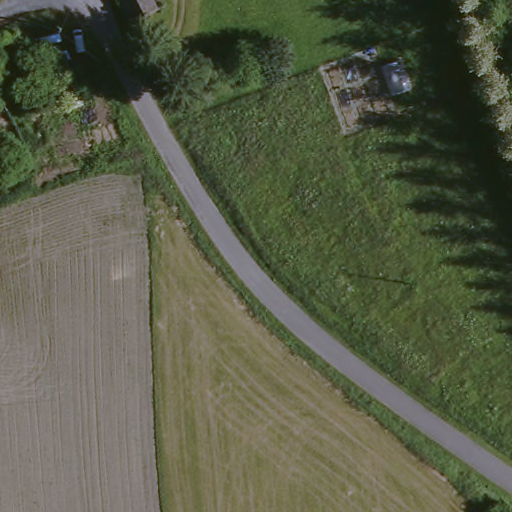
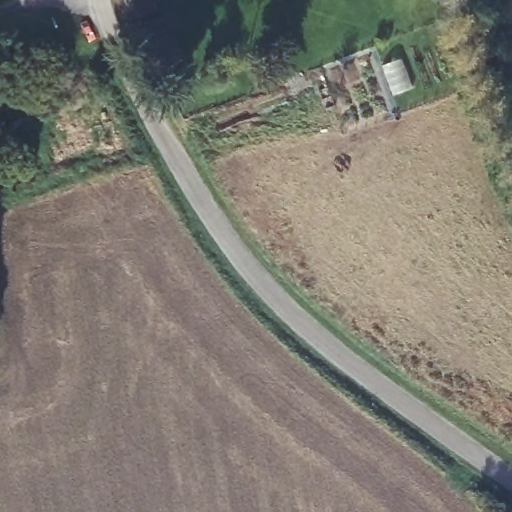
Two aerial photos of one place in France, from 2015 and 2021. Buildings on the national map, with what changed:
unchanged [(114,0),(150,0),(155,10),(127,24),(114,0)]

